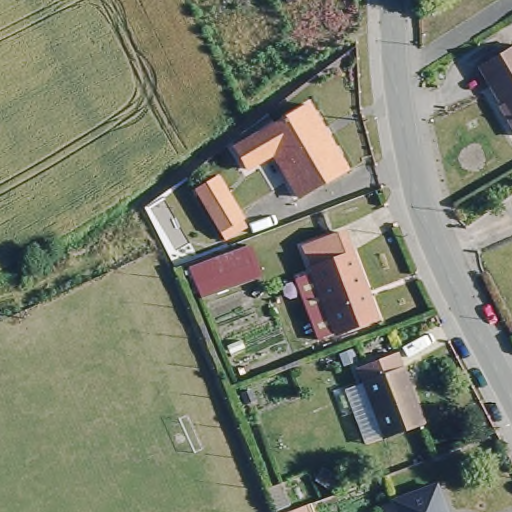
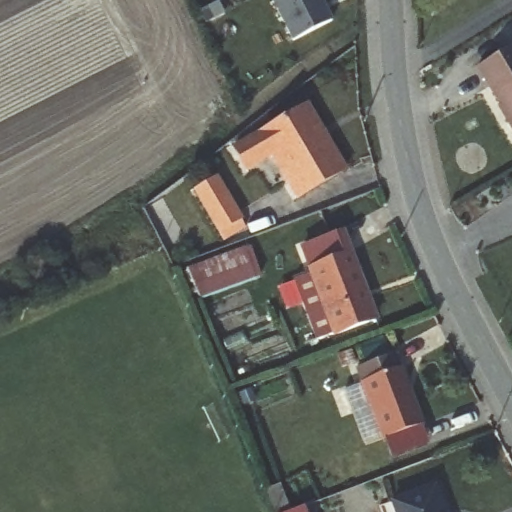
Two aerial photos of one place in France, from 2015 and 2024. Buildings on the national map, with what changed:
new [(281,0),(330,0),(341,21),(302,41),(281,0)]
unchanged [(505,120),(507,117),(477,67),(512,46),(512,133),(505,120)]
unchanged [(345,170),(299,196),(274,155),(249,168),(236,149),(308,105),(345,170)]
unchanged [(244,225),(221,238),(196,195),(217,182),(244,225)]
unchanged [(345,236),(376,321),(336,336),(305,251),(345,236)]
unchanged [(253,270),(195,288),(185,266),(245,244),(253,270)]
unchanged [(395,351),(423,420),(366,442),(344,388),(361,382),(355,367),(395,351)]
unchanged [(431,486),(441,512),(393,512),(389,501),(431,486)]
unchanged [(307,512),(293,512),(306,507),(307,512)]

